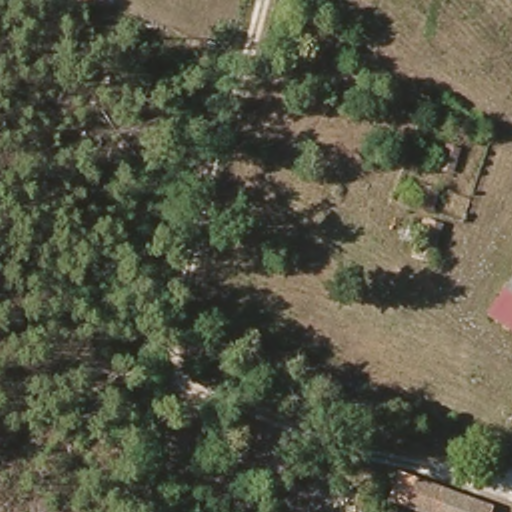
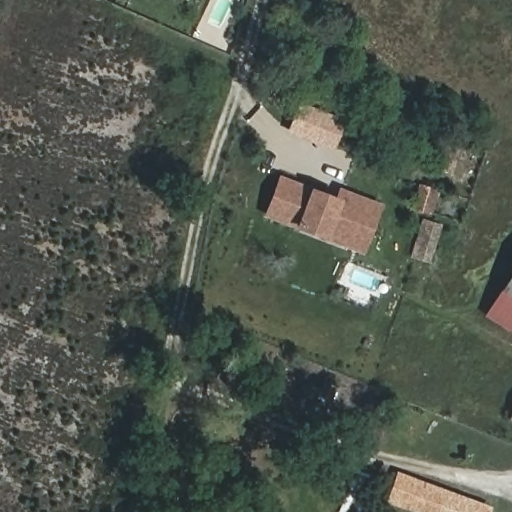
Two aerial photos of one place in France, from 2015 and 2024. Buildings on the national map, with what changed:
new [(288,132),(299,102),(344,120),(333,149),(288,132)]
unchanged [(450,171),(439,168),(446,147),(457,150),(450,171)]
new [(262,217),(279,175),(334,196),(338,187),(383,204),(364,256),(262,217)]
unchanged [(429,213),(414,208),(421,186),(436,191),(429,213)]
unchanged [(423,259),(414,256),(424,221),(433,224),(439,226),(429,261),(423,259)]
unchanged [(512,278),(512,294),(505,290),(512,278)]
unchanged [(512,294),(512,329),(489,315),(505,290),(512,294)]
unchanged [(410,506),(419,481),(448,492),(492,508),(491,512),(428,512),(410,506)]

